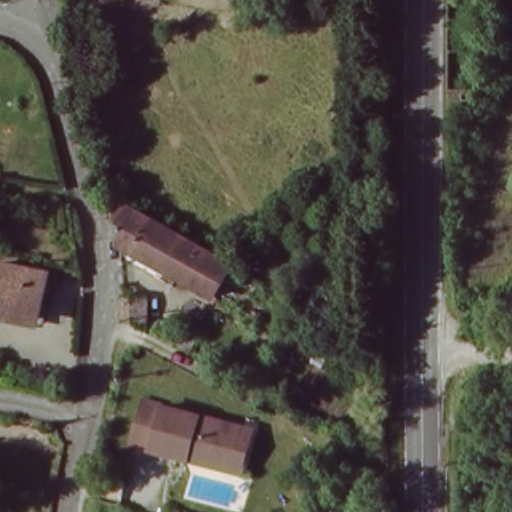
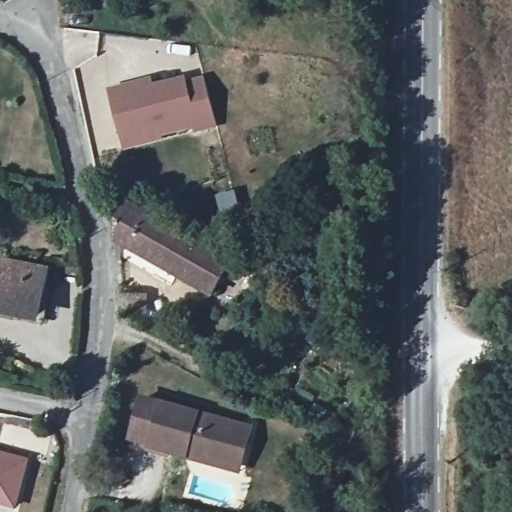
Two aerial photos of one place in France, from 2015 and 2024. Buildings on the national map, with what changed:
new [(153,77),(155,84),(188,76),(189,80),(206,78),(218,128),(197,134),(196,129),(162,137),(163,142),(125,151),(109,89),(153,77)]
unchanged [(235,263),(214,300),(119,246),(118,222),(111,206),(117,198),(202,241),(235,263)]
unchanged [(46,273),(38,320),(0,313),(0,270),(1,266),(46,273)]
unchanged [(117,328),(117,314),(116,299),(116,291),(138,303),(129,333),(117,328)]
unchanged [(241,471),(188,458),(151,449),(151,447),(133,442),(143,402),(242,426),(252,428),(241,471)]
new [(32,458),(21,509),(0,505),(0,449),(32,458)]

